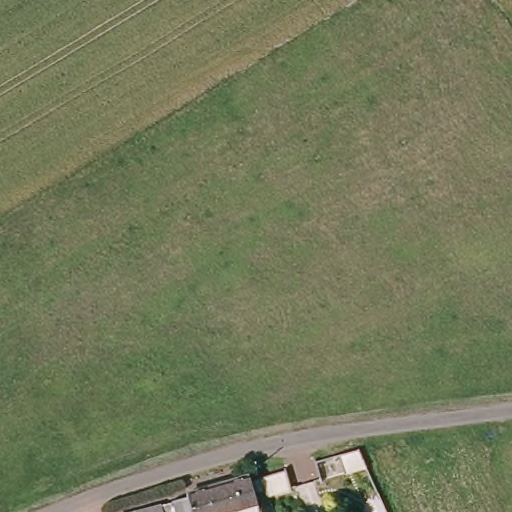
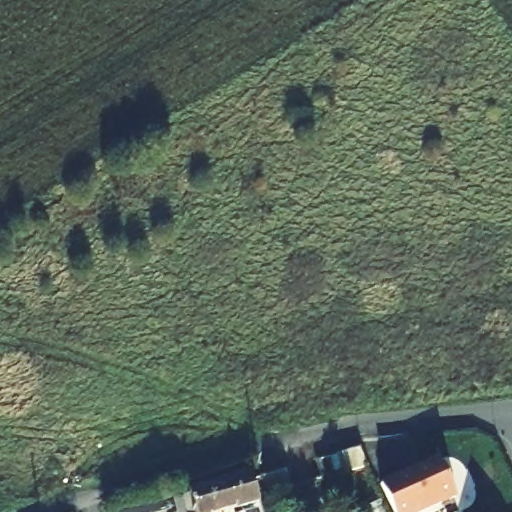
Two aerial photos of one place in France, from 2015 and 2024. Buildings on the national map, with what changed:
unchanged [(360,452),(368,469),(347,479),(339,461),(360,452)]
new [(454,501),(429,512),(390,512),(379,489),(437,463),(454,501)]
unchanged [(177,512),(173,496),(188,492),(187,490),(250,473),(252,480),(258,478),(287,470),(292,489),(267,495),(257,498),(261,512),(177,512)]
unchanged [(122,512),(163,502),(166,512),(122,512)]

